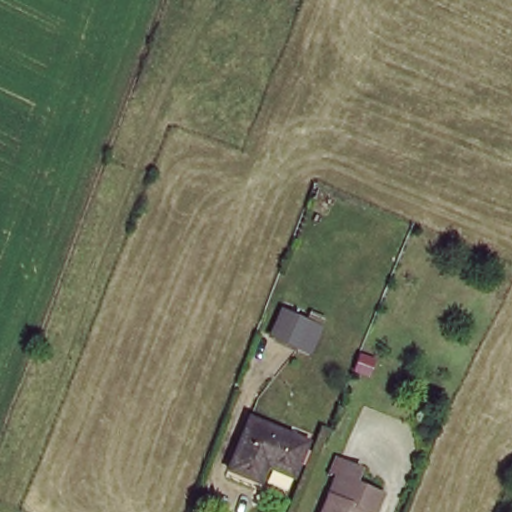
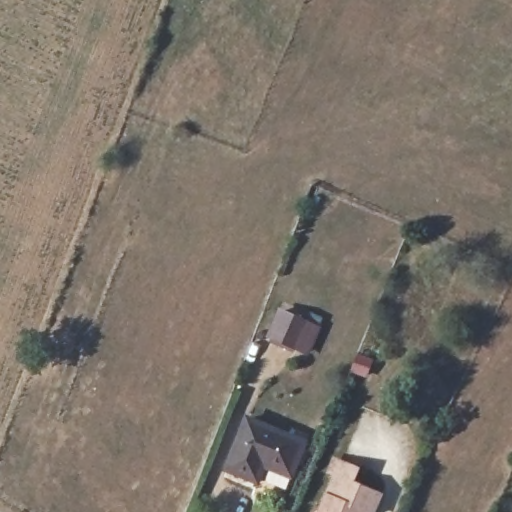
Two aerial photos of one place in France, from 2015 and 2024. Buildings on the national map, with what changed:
unchanged [(267,339),(275,307),(322,328),(310,357),(267,339)]
unchanged [(233,473),(254,421),(308,443),(294,478),(267,467),(258,484),(233,473)]
unchanged [(354,482),(382,493),(374,512),(319,512),(324,501),(340,464),(358,471),(354,482)]

